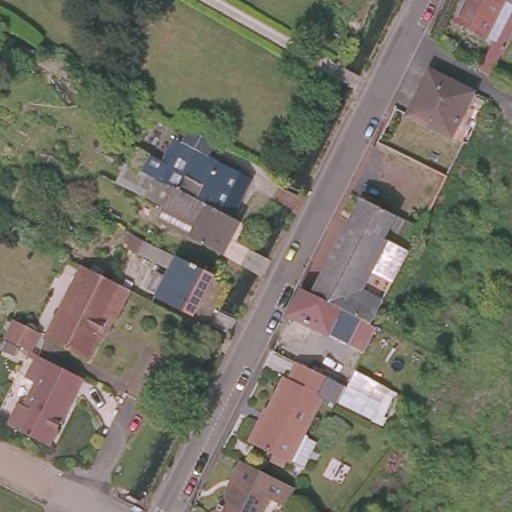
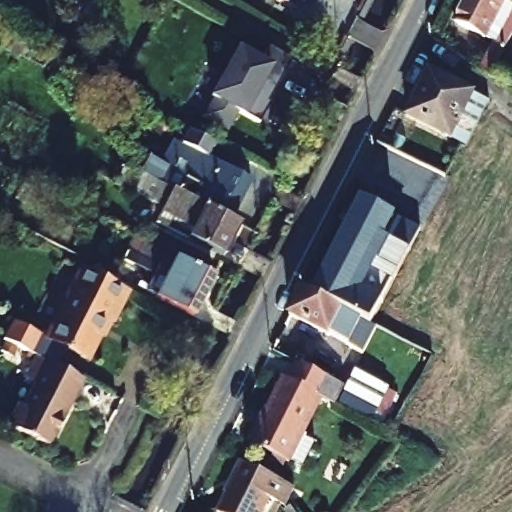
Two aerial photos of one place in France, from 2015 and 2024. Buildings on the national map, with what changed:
new [(300,15),(269,0),(307,0),(300,15)]
unchanged [(487,69),(479,64),(490,42),(455,22),(465,0),(500,0),(509,4),(511,0),(512,0),(512,23),(487,69)]
new [(215,96),(212,94),(240,47),(262,60),(270,45),(294,59),(275,89),(269,84),(262,97),(270,102),(259,122),(237,109),(226,127),(204,115),(215,96)]
unchanged [(471,88),(449,131),(404,109),(425,68),(471,88)]
unchanged [(185,129),(212,143),(205,159),(176,144),(184,128),(185,129)]
unchanged [(130,165),(117,158),(127,138),(140,145),(140,147),(189,175),(187,177),(194,180),(207,157),(220,164),(219,166),(252,184),(231,220),(210,209),(204,205),(159,181),(130,165)]
unchanged [(355,198),(390,217),(412,229),(402,247),(364,321),(306,291),(346,216),(355,198)]
unchanged [(231,220),(237,223),(220,257),(186,239),(155,222),(162,208),(194,225),(204,205),(210,209),(231,220)]
unchanged [(145,242),(194,267),(214,277),(193,317),(158,298),(160,294),(151,290),(160,272),(169,276),(172,270),(130,248),(135,237),(145,242)]
unchanged [(82,264),(129,286),(112,320),(107,318),(89,356),(43,335),(79,262),(82,264)]
unchanged [(306,291),(364,321),(350,347),(342,343),(284,312),(297,286),(306,291)]
unchanged [(36,330),(28,347),(9,339),(10,338),(12,333),(14,330),(14,329),(17,322),(36,330)]
unchanged [(77,372),(63,395),(26,376),(25,376),(27,374),(24,372),(34,350),(77,372)]
unchanged [(344,382),(335,399),(322,392),(287,457),(250,438),(284,372),(289,375),(297,359),(344,382)]
unchanged [(63,395),(41,436),(0,414),(0,413),(12,392),(17,395),(25,376),(26,376),(63,395)]
unchanged [(232,473),(244,456),(279,474),(268,492),(258,512),(215,512),(213,511),(232,473)]

